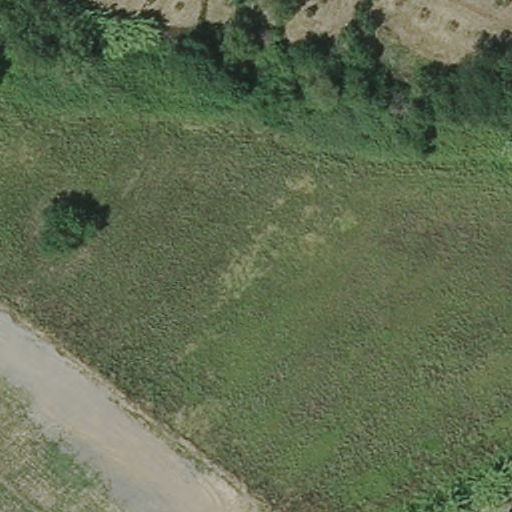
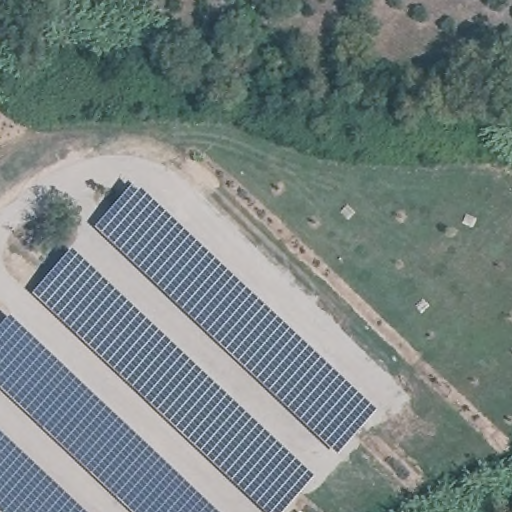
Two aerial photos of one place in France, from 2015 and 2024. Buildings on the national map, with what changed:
new [(381,412),(341,455),(96,229),(138,185),(381,412)]
new [(288,512),(270,512),(36,293),(76,250),(320,477),(288,512)]
new [(136,512),(0,384),(0,331),(13,316),(222,512),(136,512)]
new [(2,512),(0,510),(0,429),(89,512),(2,512)]

